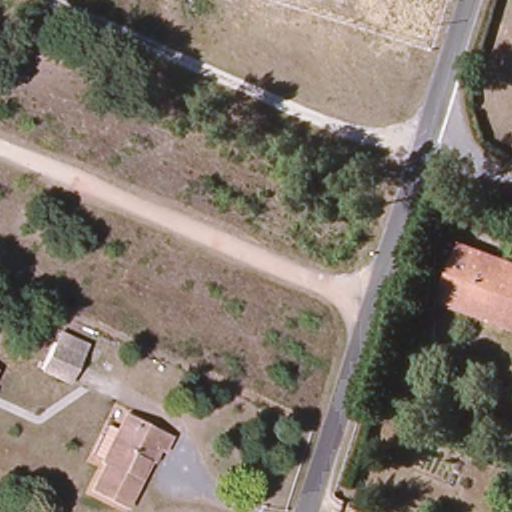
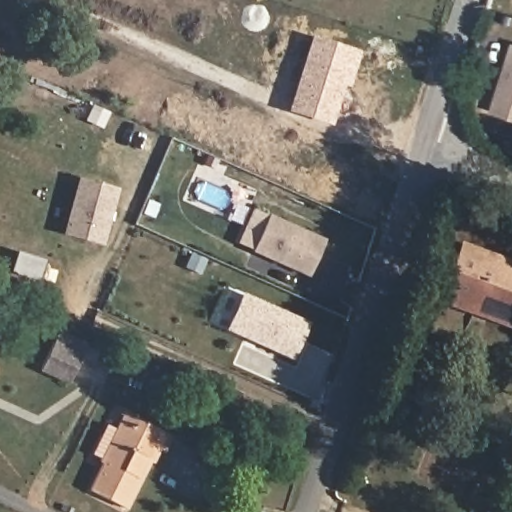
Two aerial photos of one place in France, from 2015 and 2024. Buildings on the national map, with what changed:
new [(362,50),(350,87),(345,85),(331,126),(287,112),(311,35),(362,50)]
new [(512,119),(495,114),(512,56),(512,119)]
new [(114,192),(100,246),(62,235),(77,182),(114,192)]
new [(149,200),(158,205),(152,218),(142,213),(149,200)]
new [(307,276),(250,250),(237,245),(252,210),(266,216),(323,242),(307,276)]
unchanged [(512,266),(512,334),(438,305),(458,247),(512,266)]
new [(227,331),(243,296),(307,325),(292,359),(257,343),(246,339),(227,331)]
unchanged [(75,355),(64,381),(35,369),(46,343),(75,355)]
unchanged [(154,471),(147,469),(140,484),(144,487),(132,512),(124,512),(96,498),(107,471),(103,468),(102,463),(95,460),(108,430),(120,434),(126,421),(140,428),(168,441),(154,471)]

